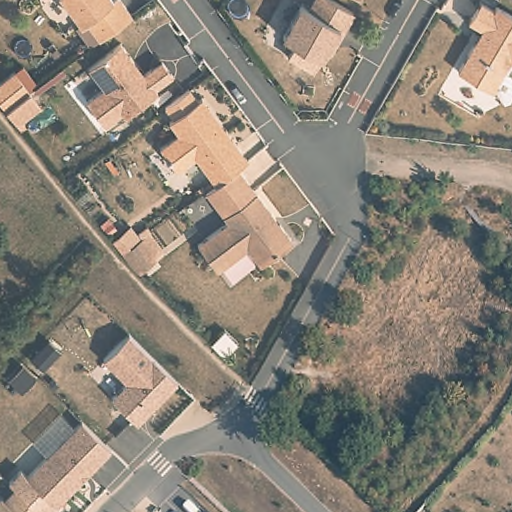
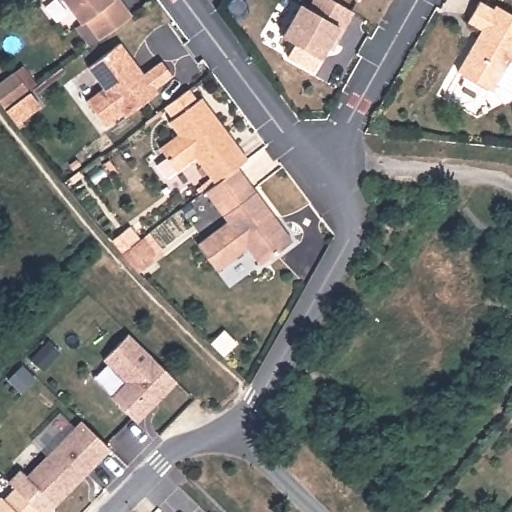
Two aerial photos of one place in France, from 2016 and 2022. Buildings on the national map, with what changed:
unchanged [(63,0),(119,0),(131,15),(117,26),(99,39),(85,20),(81,24),(63,0)]
unchanged [(493,9),(496,4),(512,14),(512,62),(510,60),(492,91),(458,71),(473,45),(482,29),(468,21),(479,1),(493,9)]
unchanged [(343,29),(335,43),(331,40),(321,59),(283,36),(301,4),(343,29)]
unchanged [(172,75),(154,89),(157,93),(125,117),(122,113),(105,126),(86,101),(104,88),(88,67),(120,43),(134,61),(144,74),(162,61),(172,75)]
unchanged [(16,124),(5,110),(0,104),(0,82),(14,72),(29,92),(27,94),(37,108),(16,124)]
unchanged [(222,179),(202,153),(183,166),(166,144),(185,129),(175,117),(201,98),(221,124),(225,130),(247,159),(238,168),(222,179)]
unchanged [(238,168),(292,241),(260,265),(248,248),(217,271),(198,244),(228,222),(205,191),(222,179),(238,168)]
unchanged [(137,243),(140,239),(154,258),(139,269),(137,270),(125,254),(123,253),(137,243)]
unchanged [(136,422),(110,397),(125,382),(102,359),(128,333),(176,381),(136,422)]
unchanged [(48,341),(59,351),(42,369),(31,359),(48,341)]
unchanged [(81,419),(83,422),(110,449),(54,506),(25,477),(81,419)]
unchanged [(1,497),(4,499),(15,488),(39,512),(0,512),(0,497),(1,497)]

